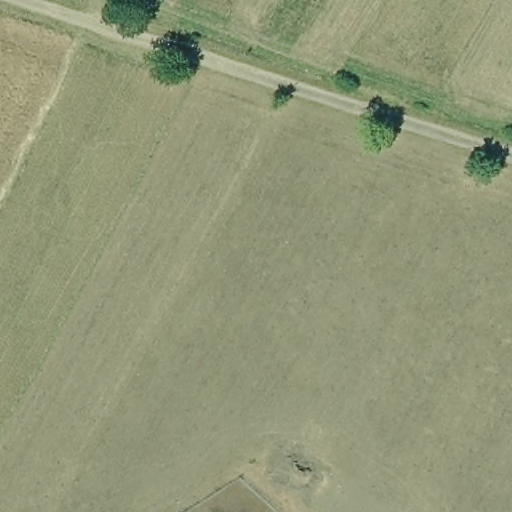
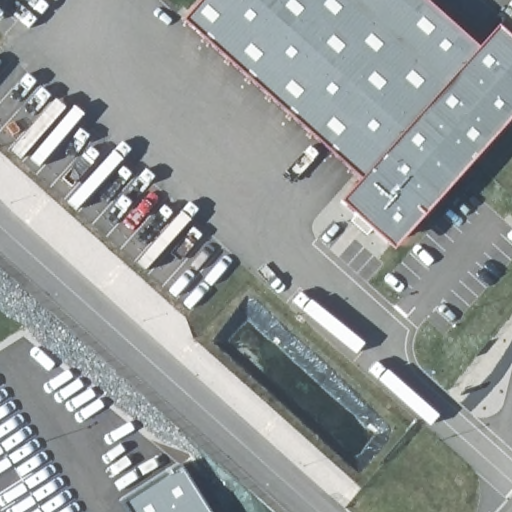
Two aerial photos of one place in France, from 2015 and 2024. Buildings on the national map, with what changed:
new [(480,47),(499,25),(512,36),(512,120),(396,248),(341,201),(361,180),(183,20),(200,0),(427,0),(480,47)]
new [(131,512),(124,501),(181,467),(210,512),(131,512)]

